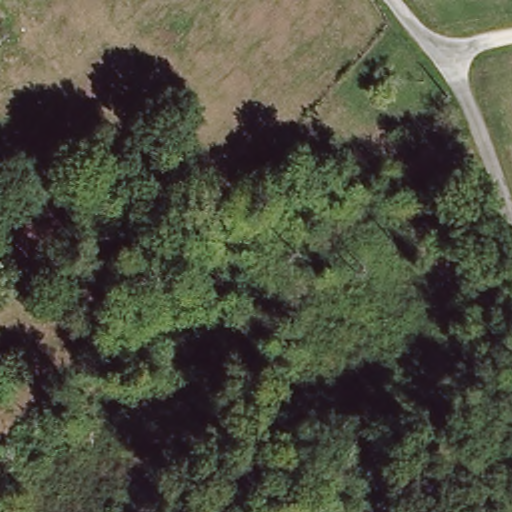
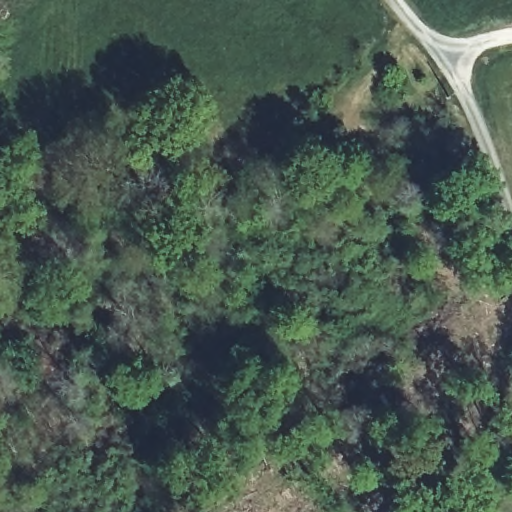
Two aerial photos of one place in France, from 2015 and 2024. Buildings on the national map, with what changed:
[]

